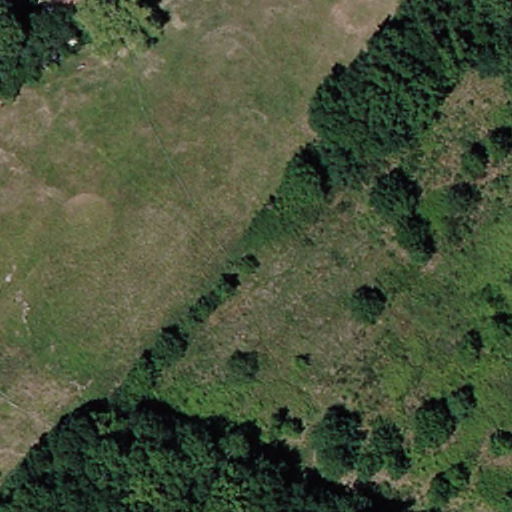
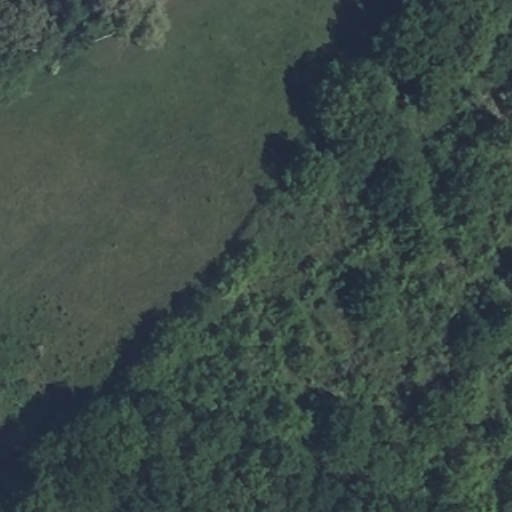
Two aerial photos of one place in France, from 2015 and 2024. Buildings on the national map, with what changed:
unchanged [(0,7),(0,0),(6,0),(0,7)]
unchanged [(59,24),(58,25),(43,11),(54,0),(68,0),(76,7),(59,24)]

